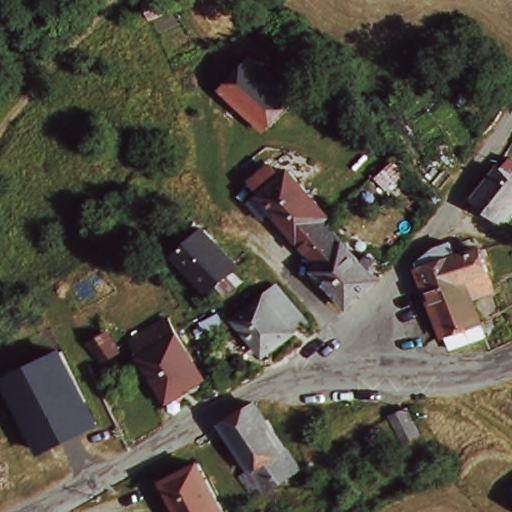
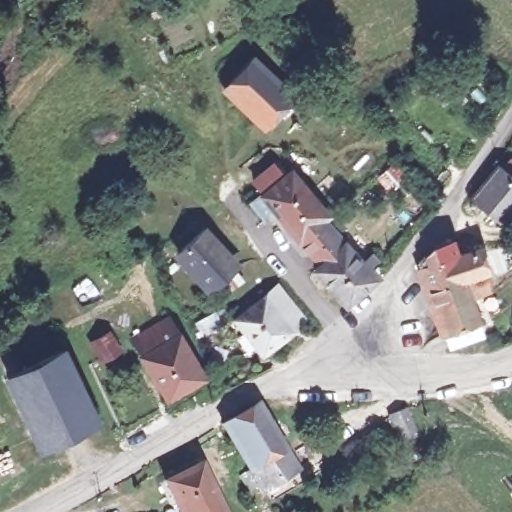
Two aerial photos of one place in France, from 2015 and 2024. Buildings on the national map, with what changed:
unchanged [(168,0),(170,6),(150,15),(144,1),(147,0),(168,0)]
unchanged [(300,89),(272,119),(230,80),(259,50),(300,89)]
unchanged [(512,197),(502,208),(473,185),(498,156),(512,168),(512,197)]
unchanged [(262,193),(253,182),(273,167),(282,177),(290,171),(302,186),(272,210),(270,208),(262,198),(260,195),(262,193)]
unchanged [(297,243),(272,210),(302,186),(327,216),(325,217),(323,219),(344,242),(318,265),(297,243)]
unchanged [(217,230),(214,233),(240,261),(218,283),(182,244),(207,219),(217,230)]
unchanged [(460,294),(473,332),(442,343),(419,283),(409,255),(422,239),(437,234),(442,247),(447,246),(465,240),(472,263),(480,287),(460,294)]
unchanged [(313,270),(318,265),(344,242),(362,262),(372,254),(377,259),(367,268),(377,278),(346,305),(330,289),(313,270)]
unchanged [(260,348),(232,312),(271,283),(300,319),(260,348)]
unchanged [(168,404),(163,394),(127,333),(164,311),(200,372),(206,382),(168,404)]
unchanged [(102,326),(111,340),(94,350),(85,336),(102,326)]
unchanged [(69,344),(100,412),(44,439),(12,371),(69,344)]
unchanged [(260,393),(290,439),(255,460),(227,413),(260,393)]
unchanged [(407,400),(419,424),(405,433),(392,409),(407,400)]
unchanged [(255,460),(290,439),(302,460),(268,480),(267,479),(264,473),(263,473),(255,478),(247,464),(255,460)]
unchanged [(192,457),(220,512),(177,512),(158,474),(192,457)]
unchanged [(256,509),(257,512),(248,512),(256,509)]
unchanged [(263,511),(264,512),(261,512),(263,511)]

